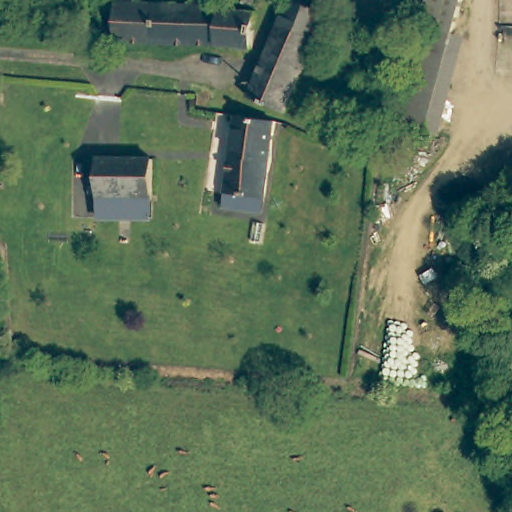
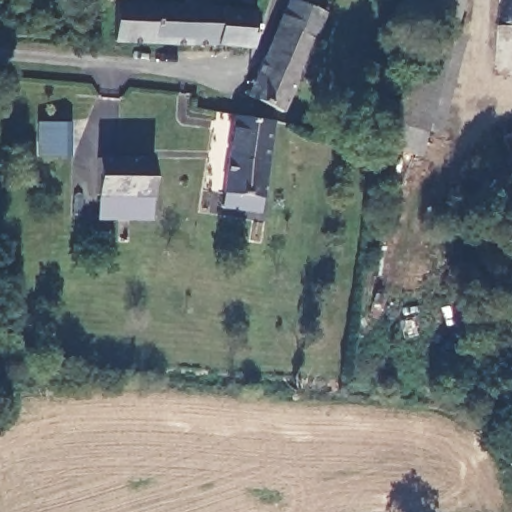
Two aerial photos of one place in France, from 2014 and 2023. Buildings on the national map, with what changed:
unchanged [(245,0),(262,0),(258,7),(245,0)]
unchanged [(290,0),(304,0),(328,9),(286,108),(250,89),(254,82),(290,0)]
unchanged [(466,38),(439,135),(391,123),(425,0),(462,0),(453,33),(466,38)]
unchanged [(202,7),(200,47),(160,46),(140,46),(118,46),(118,13),(118,6),(140,7),(161,7),(193,7),(202,7)]
unchanged [(257,47),(200,47),(202,7),(258,7),(257,47)]
unchanged [(234,115),(272,116),(269,156),(232,153),(234,115)]
new [(41,124),(65,121),(62,159),(41,153),(41,124)]
unchanged [(230,207),(229,189),(232,153),(269,156),(266,193),(265,210),(230,207)]
unchanged [(152,192),(150,192),(98,189),(99,154),(154,155),(152,192)]
unchanged [(150,192),(149,215),(96,212),(98,189),(150,192)]

